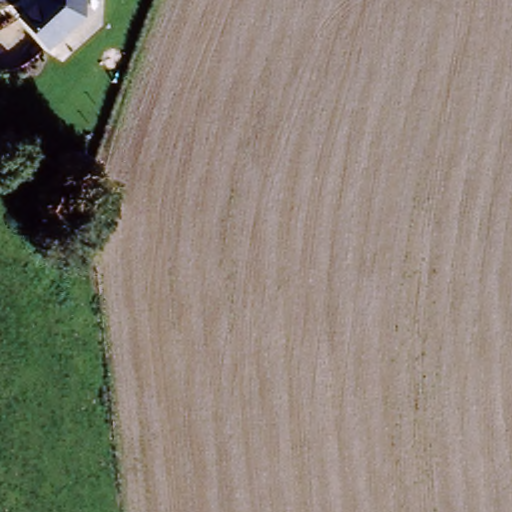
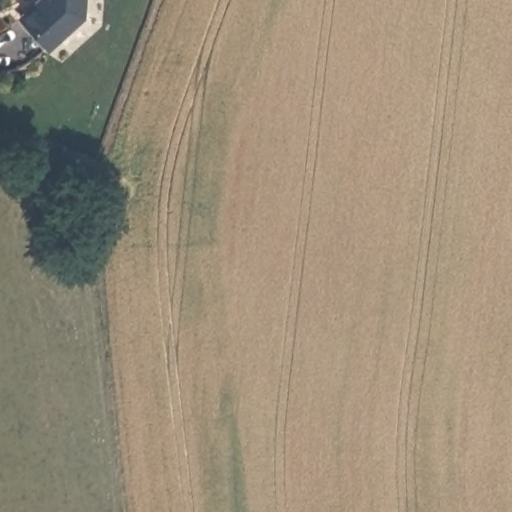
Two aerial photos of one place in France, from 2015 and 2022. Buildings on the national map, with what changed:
unchanged [(45,0),(86,0),(82,24),(47,54),(18,23),(37,6),(40,9),(45,5),(45,0)]

